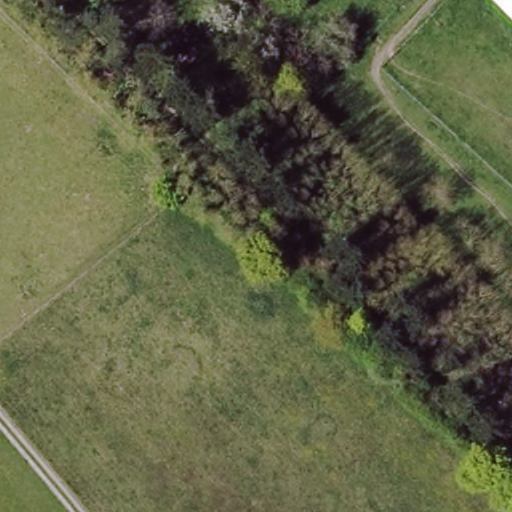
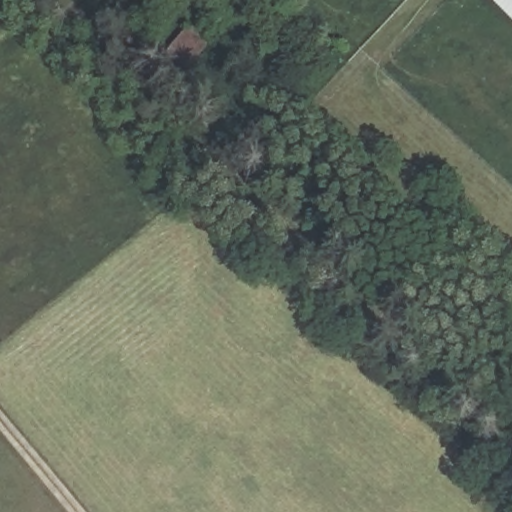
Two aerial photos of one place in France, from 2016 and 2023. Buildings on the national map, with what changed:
unchanged [(185,30),(202,49),(187,74),(164,53),(185,30)]

